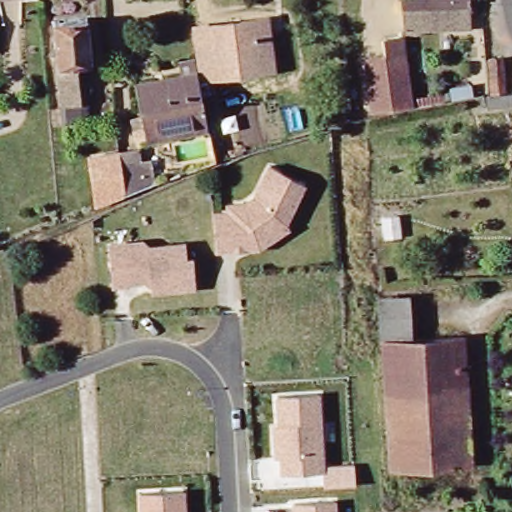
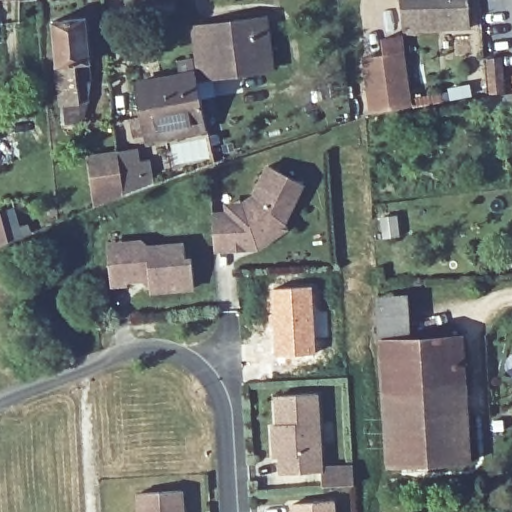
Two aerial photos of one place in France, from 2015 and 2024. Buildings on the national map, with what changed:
unchanged [(473,25),(403,30),(401,0),(472,0),(473,25)]
unchanged [(76,99),(59,100),(51,16),(84,14),(87,57),(72,59),(76,99)]
unchanged [(265,18),(270,65),(201,74),(196,25),(265,18)]
unchanged [(400,37),(409,101),(373,106),(367,57),(385,55),(383,40),(400,37)]
unchanged [(496,91),(485,93),(481,60),(493,59),(496,91)]
unchanged [(512,69),(512,82),(511,69),(512,69)]
unchanged [(142,128),(134,81),(195,70),(196,79),(205,76),(220,148),(210,150),(206,128),(144,138),(142,128)]
unchanged [(512,95),(512,105),(480,107),(479,96),(512,95)]
unchanged [(122,200),(121,196),(95,200),(90,162),(120,159),(137,156),(140,170),(155,166),(158,187),(129,197),(122,200)]
unchanged [(215,246),(213,216),(224,216),(223,206),(244,206),(254,200),(270,169),(305,185),(285,226),(287,231),(258,250),(244,251),(230,251),(215,252),(215,246)]
new [(14,237),(2,241),(0,242),(0,212),(6,210),(11,230),(21,227),(24,234),(14,237)]
unchanged [(190,256),(197,256),(199,285),(155,288),(155,282),(147,276),(132,277),(132,281),(116,282),(115,265),(113,247),(152,244),(190,241),(190,256)]
new [(312,285),(315,353),(273,355),(268,288),(312,285)]
unchanged [(408,295),(411,339),(383,341),(381,297),(408,295)]
unchanged [(386,466),(377,341),(383,341),(411,339),(460,336),(468,461),(386,466)]
unchanged [(320,392),(326,471),(278,475),(277,458),(271,458),(269,428),(275,427),(273,396),(320,392)]
unchanged [(185,490),(187,512),(144,512),(143,493),(185,490)]
unchanged [(336,500),(337,512),(292,512),(291,502),(336,500)]

